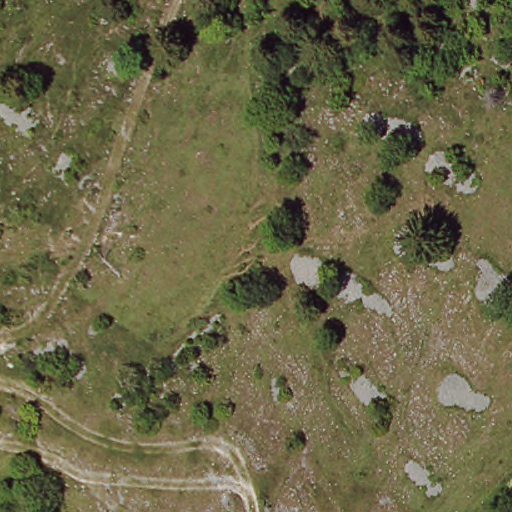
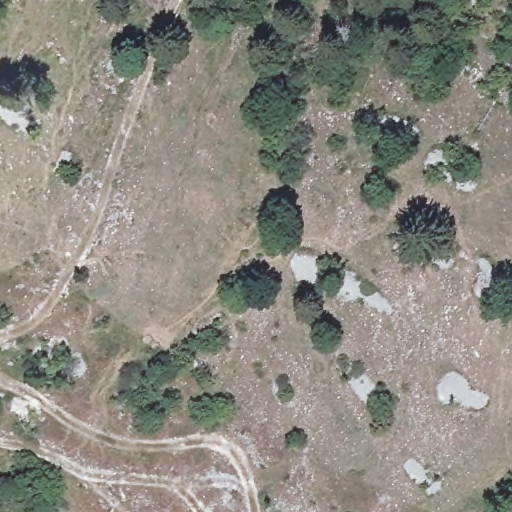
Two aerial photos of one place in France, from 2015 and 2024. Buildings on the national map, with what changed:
[]

